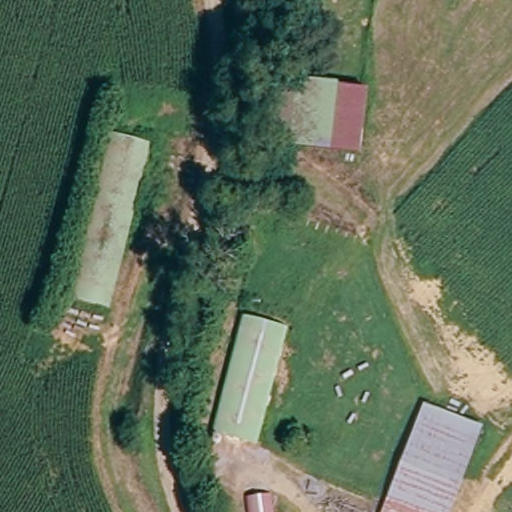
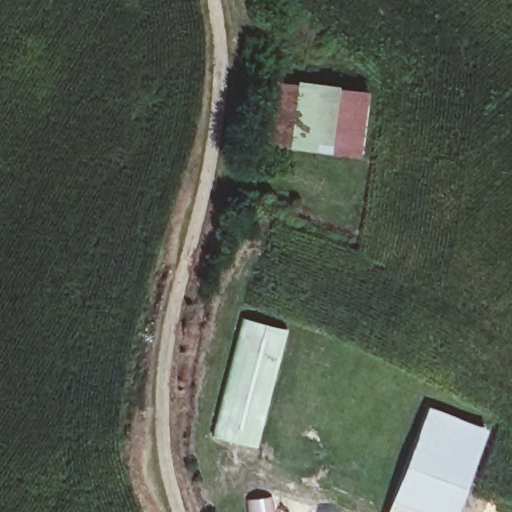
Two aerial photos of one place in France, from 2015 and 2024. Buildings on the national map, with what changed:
unchanged [(275,150),(284,78),(340,82),(333,154),(275,150)]
demolished [(112,311),(78,300),(124,136),(156,146),(112,311)]
unchanged [(263,449),(217,437),(247,319),(295,332),(263,449)]
unchanged [(393,512),(426,403),(487,428),(459,512),(393,512)]
unchanged [(278,493),(281,512),(251,512),(248,495),(278,493)]

